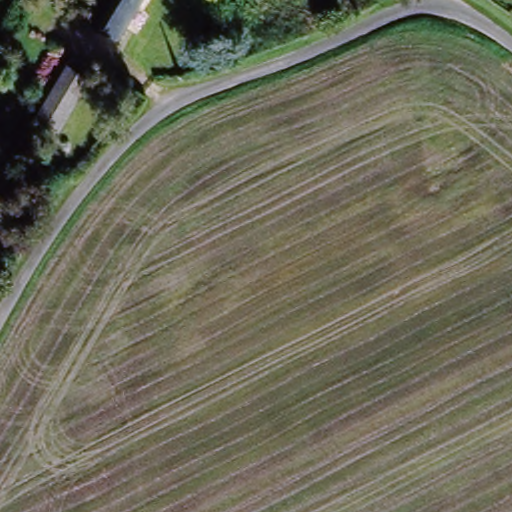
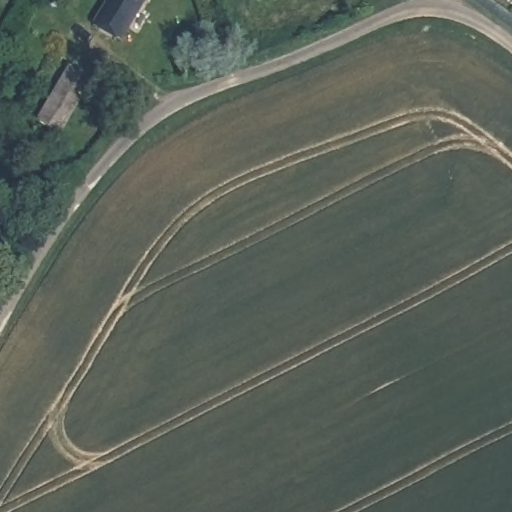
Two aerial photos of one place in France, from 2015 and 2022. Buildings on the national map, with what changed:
unchanged [(105,13),(113,0),(149,0),(132,29),(105,13)]
unchanged [(94,82),(51,153),(30,139),(72,70),(94,82)]

